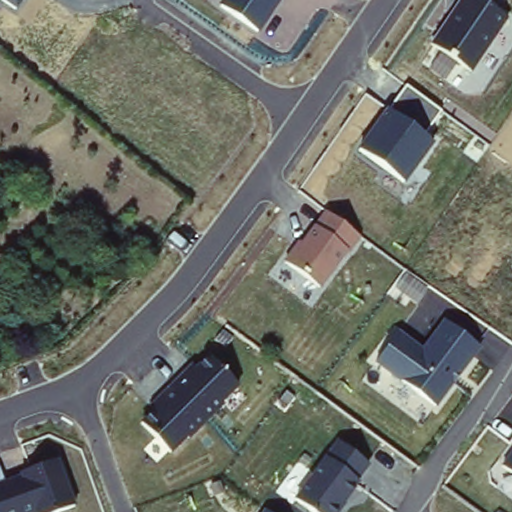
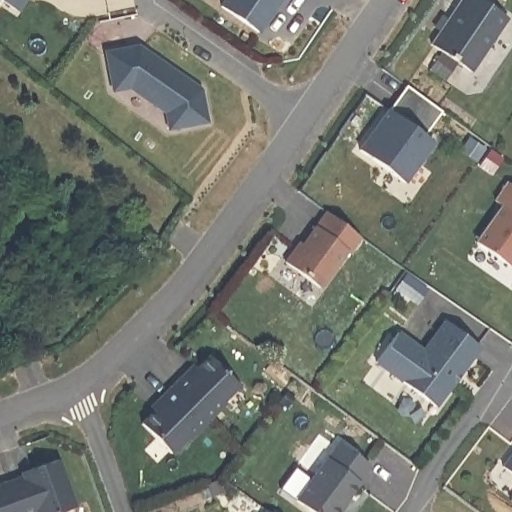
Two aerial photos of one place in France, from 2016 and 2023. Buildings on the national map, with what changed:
unchanged [(17,9),(4,0),(23,0),(17,9)]
unchanged [(258,33),(220,7),(224,0),(281,0),(258,33)]
unchanged [(472,72),(434,46),(463,0),(481,0),(509,20),(472,72)]
new [(165,115),(131,91),(111,94),(104,50),(141,45),(206,89),(210,125),(168,132),(165,115)]
unchanged [(405,183),(360,150),(406,86),(442,111),(423,135),(434,144),(405,183)]
new [(512,192),(512,269),(474,241),(512,192)]
unchanged [(321,289),(285,263),(325,210),(362,238),(321,289)]
unchanged [(435,408),(375,365),(399,330),(422,347),(441,320),(481,347),(435,408)]
unchanged [(223,401),(226,405),(190,441),(186,438),(173,452),(142,423),(205,355),(240,385),(223,401)]
unchanged [(311,512),(295,500),(337,443),(369,465),(338,512),(311,512)]
unchanged [(512,453),(512,475),(502,467),(512,453)]
unchanged [(0,512),(0,488),(20,480),(17,472),(59,457),(76,506),(59,512),(0,512)]
unchanged [(264,512),(262,512),(263,511),(264,512)]

